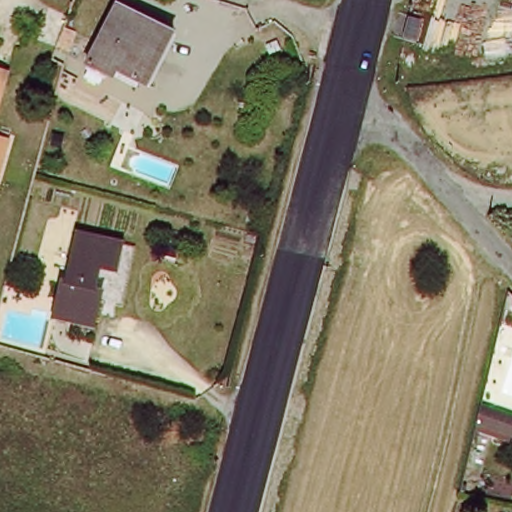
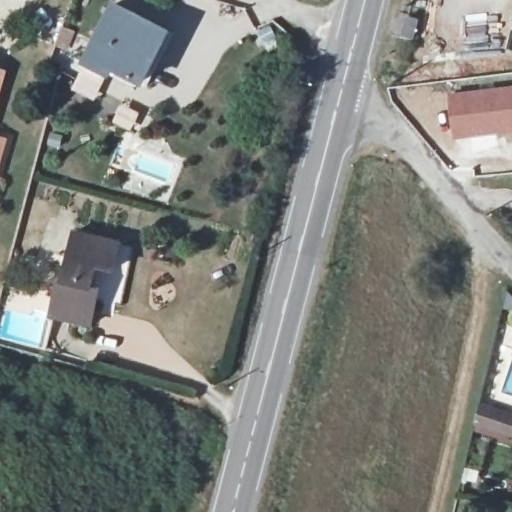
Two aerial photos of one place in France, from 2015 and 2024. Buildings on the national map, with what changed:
unchanged [(169,33),(141,83),(115,68),(110,79),(85,64),(119,5),(169,33)]
unchanged [(427,21),(420,39),(408,36),(414,18),(427,21)]
unchanged [(0,93),(0,70),(6,72),(0,93)]
new [(512,85),(512,133),(453,141),(447,91),(512,85)]
unchanged [(119,240),(113,267),(97,264),(94,284),(103,285),(96,320),(56,314),(63,281),(69,280),(77,234),(119,240)]

